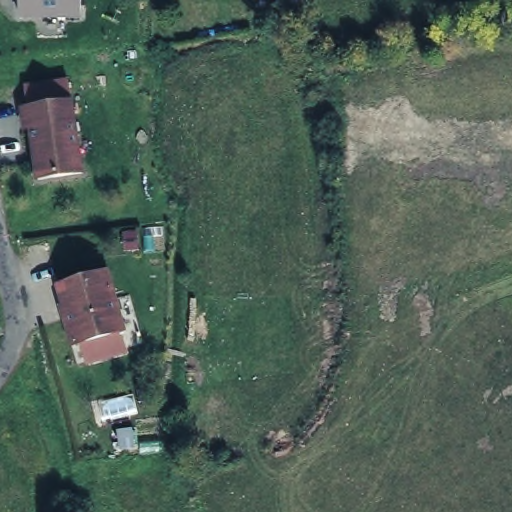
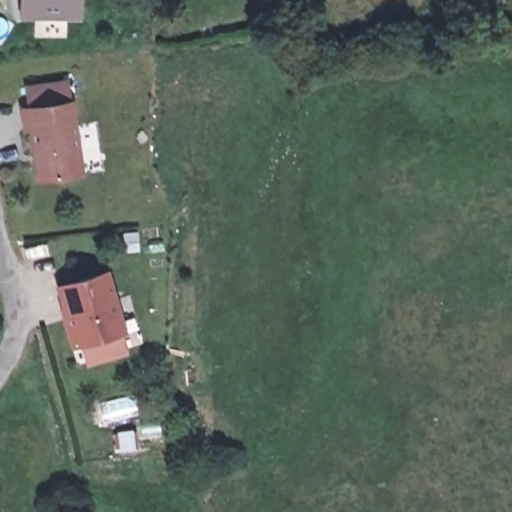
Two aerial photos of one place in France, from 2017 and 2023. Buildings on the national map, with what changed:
unchanged [(18,0),(81,0),(81,17),(18,16),(18,0)]
unchanged [(86,178),(40,186),(32,138),(25,140),(22,116),(76,108),(86,178)]
unchanged [(107,275),(125,334),(77,350),(59,291),(107,275)]

